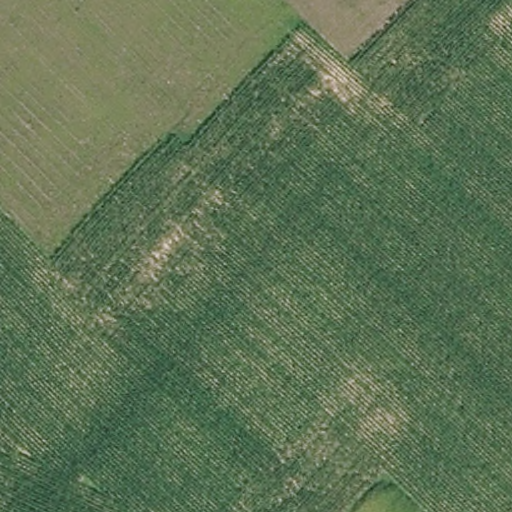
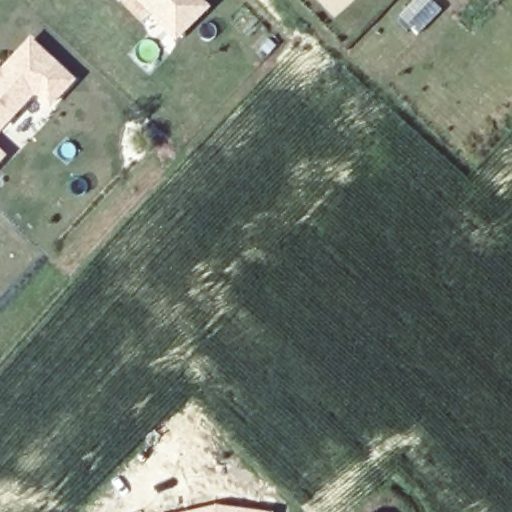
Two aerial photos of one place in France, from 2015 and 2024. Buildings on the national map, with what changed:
new [(204,0),(210,6),(175,40),(135,0),(204,0)]
new [(50,109),(34,95),(0,133),(0,68),(30,36),(77,80),(50,109)]
new [(0,163),(0,148),(7,155),(0,163)]
new [(217,503),(274,511),(273,512),(176,512),(217,503)]

